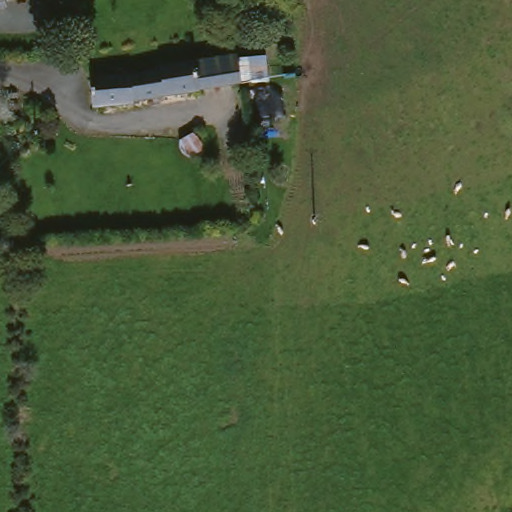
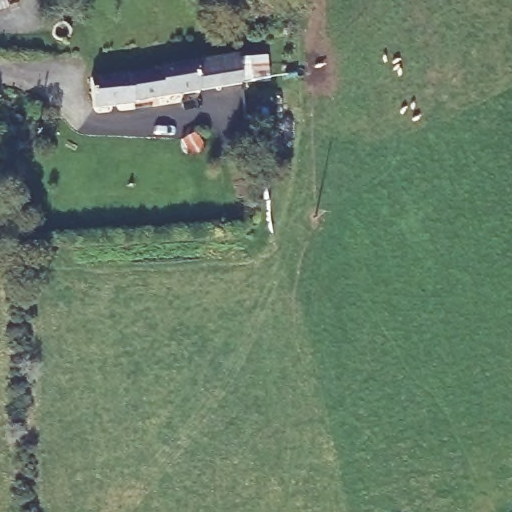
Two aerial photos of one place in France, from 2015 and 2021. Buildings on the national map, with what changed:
unchanged [(0,4),(0,0),(15,0),(0,4)]
unchanged [(104,115),(99,86),(253,59),(257,88),(104,115)]

